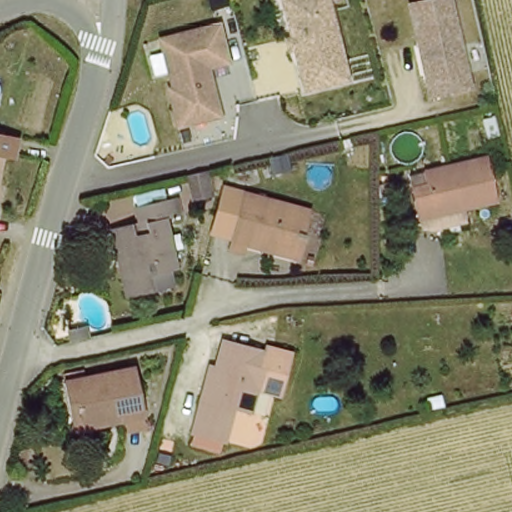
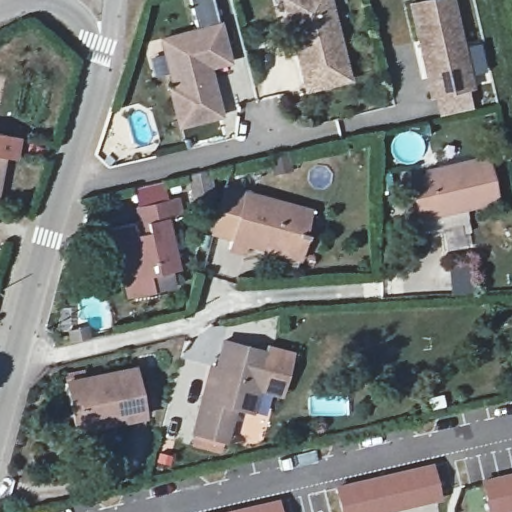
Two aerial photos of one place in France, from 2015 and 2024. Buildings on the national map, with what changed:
unchanged [(290,41),(287,29),(284,14),(280,0),(324,0),(325,4),(345,82),(303,92),(293,50),(287,52),(284,42),(290,41)]
unchanged [(418,54),(407,6),(435,0),(448,0),(461,62),(467,91),(427,99),(424,81),(422,72),(418,54)]
unchanged [(205,64),(217,113),(176,122),(167,85),(171,84),(160,40),(159,34),(194,26),(216,21),(217,26),(225,59),(205,64)]
unchanged [(0,130),(21,134),(17,156),(8,154),(0,190),(0,130)]
unchanged [(500,201),(425,218),(418,187),(415,176),(431,172),(490,158),(500,201)]
unchanged [(214,167),(218,191),(201,196),(195,171),(214,167)]
unchanged [(298,256),(261,246),(245,240),(243,247),(228,244),(243,189),(310,207),(304,230),(306,231),(298,256)]
unchanged [(112,246),(108,230),(131,225),(133,235),(140,234),(135,207),(166,199),(171,217),(164,217),(175,269),(166,272),(170,287),(150,292),(130,297),(125,298),(112,246)]
unchanged [(87,326),(90,335),(75,338),(73,329),(87,326)]
unchanged [(260,354),(262,346),(289,354),(277,401),(249,393),(243,415),(226,411),(217,443),(185,435),(196,397),(203,368),(209,370),(217,341),(260,354)]
unchanged [(73,402),(69,379),(67,369),(89,365),(91,374),(138,363),(149,411),(128,416),(78,427),(73,402)]
new [(440,499),(387,512),(339,512),(333,485),(431,462),(440,499)]
new [(507,512),(488,512),(482,481),(512,473),(512,511),(507,512)]
new [(279,512),(238,512),(277,502),(279,512)]

